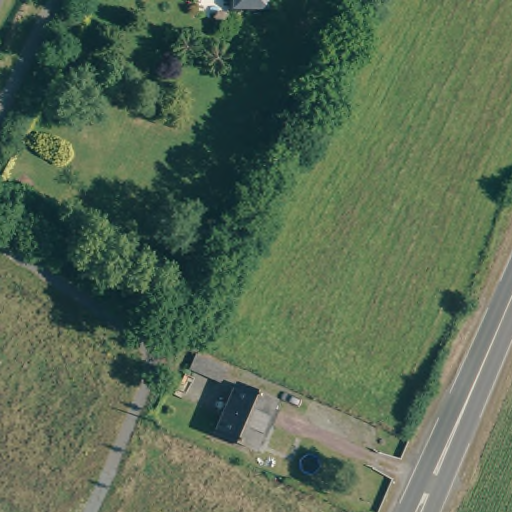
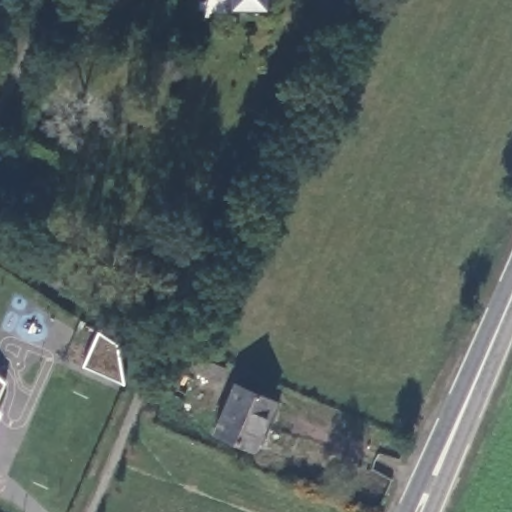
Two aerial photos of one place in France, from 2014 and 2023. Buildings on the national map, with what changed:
unchanged [(231,10),(230,0),(270,0),(271,8),(231,10)]
new [(125,385),(82,366),(99,331),(117,343),(125,385)]
unchanged [(205,360),(234,373),(227,387),(199,374),(205,360)]
demolished [(202,382),(191,402),(182,397),(194,377),(202,382)]
unchanged [(5,383),(0,394),(0,378),(5,383)]
unchanged [(280,405),(258,452),(222,435),(244,390),(280,405)]
unchanged [(3,411),(0,419),(0,410),(3,411)]

